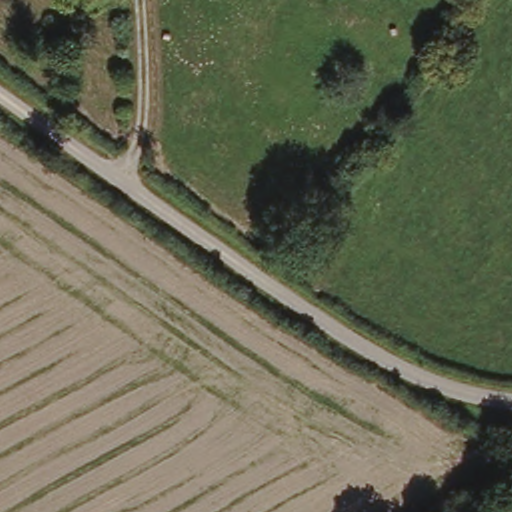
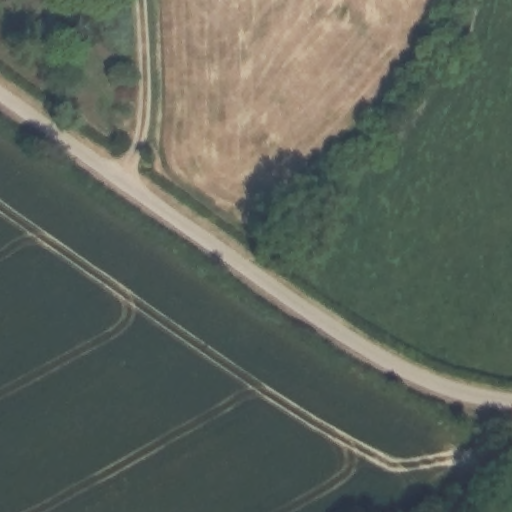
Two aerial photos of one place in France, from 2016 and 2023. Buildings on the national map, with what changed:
[]

